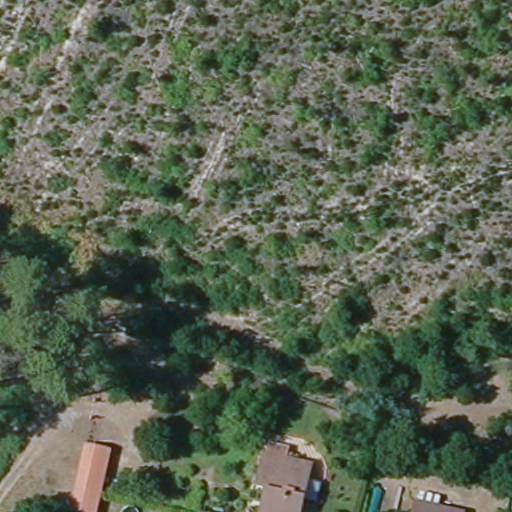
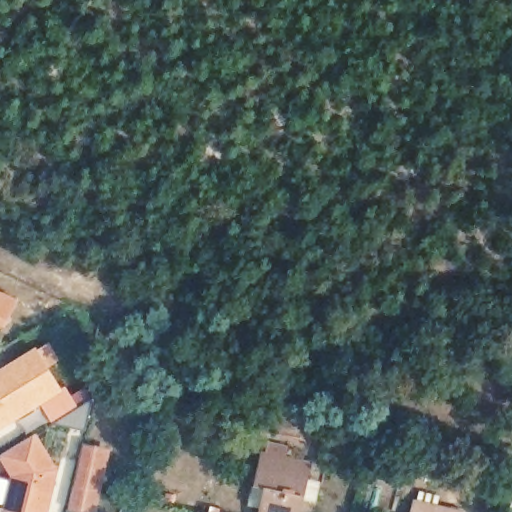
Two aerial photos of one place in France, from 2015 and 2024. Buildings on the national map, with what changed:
new [(17,302),(7,325),(0,322),(0,294),(17,302)]
new [(36,354),(60,392),(0,429),(0,376),(36,354)]
new [(94,401),(87,435),(52,426),(94,401)]
new [(56,471),(47,512),(7,512),(15,478),(2,457),(35,437),(56,471)]
unchanged [(74,488),(83,450),(108,455),(99,494),(94,512),(87,512),(70,508),(74,488)]
unchanged [(253,491),(260,461),(305,470),(301,488),(298,502),(296,512),(259,512),(263,493),(253,491)]
unchanged [(512,476),(512,497),(508,496),(512,476)]
unchanged [(431,512),(415,512),(416,508),(431,512)]

